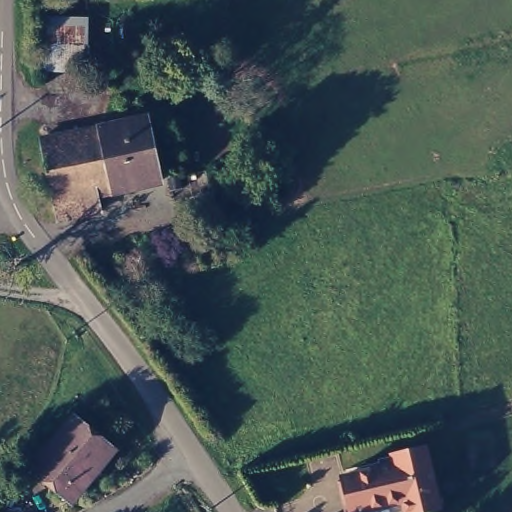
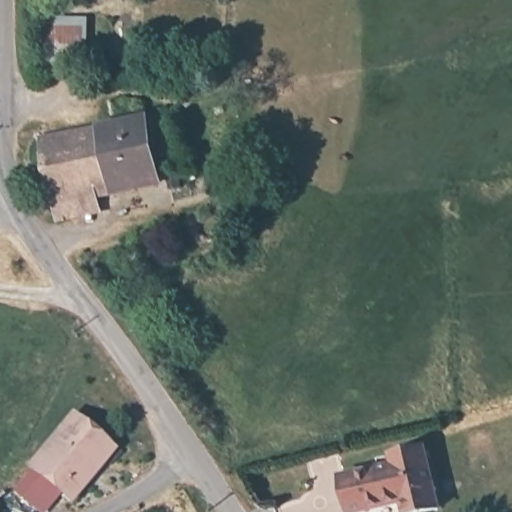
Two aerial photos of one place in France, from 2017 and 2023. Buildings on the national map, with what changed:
unchanged [(57,14),(90,14),(87,66),(55,66),(57,14)]
unchanged [(42,129),(145,109),(158,173),(113,183),(100,186),(95,187),(99,200),(58,208),(55,195),(42,129)]
unchanged [(90,473),(71,496),(32,464),(74,413),(103,438),(112,446),(90,473)]
unchanged [(342,468),(395,456),(393,447),(425,439),(438,498),(407,506),(403,491),(350,503),(342,468)]
unchanged [(0,510),(1,512),(0,512),(0,510)]

